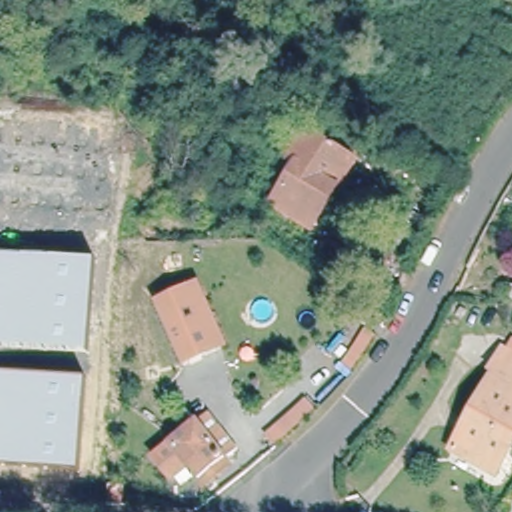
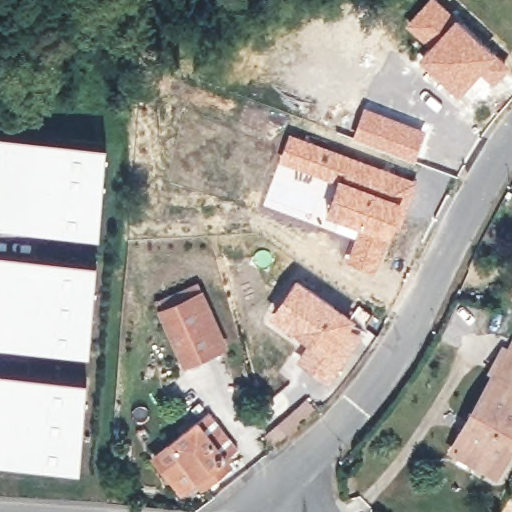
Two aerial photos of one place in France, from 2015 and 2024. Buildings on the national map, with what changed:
new [(442,0),(455,12),(425,45),(403,24),(424,0),(442,0)]
new [(425,45),(455,12),(509,64),(493,81),(479,70),(459,91),(417,54),(425,45)]
new [(363,105),(426,129),(414,158),(353,135),(363,105)]
new [(289,131),(417,179),(402,217),(399,216),(374,270),(344,257),(358,225),(325,212),(335,181),(279,159),(289,131)]
new [(104,237),(0,229),(0,136),(110,145),(104,237)]
demolished [(351,155),(335,185),(339,187),(317,229),(277,207),(299,165),(314,136),(351,155)]
unchanged [(88,350),(0,344),(0,252),(94,259),(88,350)]
new [(296,275),(356,316),(335,345),(348,355),(329,380),(294,357),(307,340),(269,312),(296,275)]
unchanged [(209,352),(190,360),(169,310),(165,300),(202,285),(205,293),(219,323),(228,344),(209,352)]
new [(511,285),(512,285),(512,298),(509,298),(511,285)]
unchanged [(497,473),(455,450),(498,372),(494,370),(504,352),(512,356),(512,446),(497,473)]
unchanged [(79,469),(0,464),(0,372),(85,380),(79,469)]
new [(318,408),(313,415),(309,412),(289,435),(285,432),(274,445),(265,438),(301,395),(318,408)]
unchanged [(182,462),(165,475),(148,453),(189,420),(192,422),(202,413),(228,445),(217,453),(218,455),(200,469),(193,475),(182,462)]

